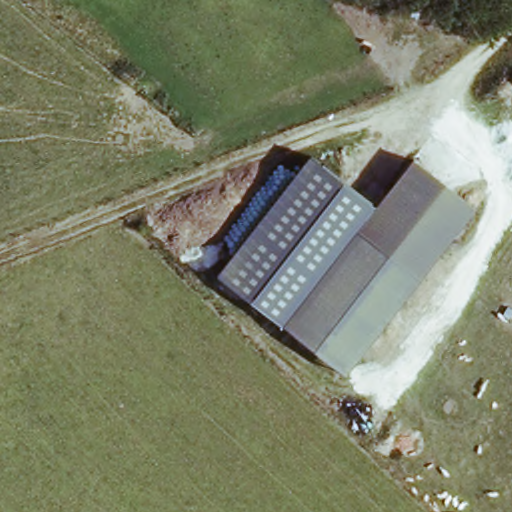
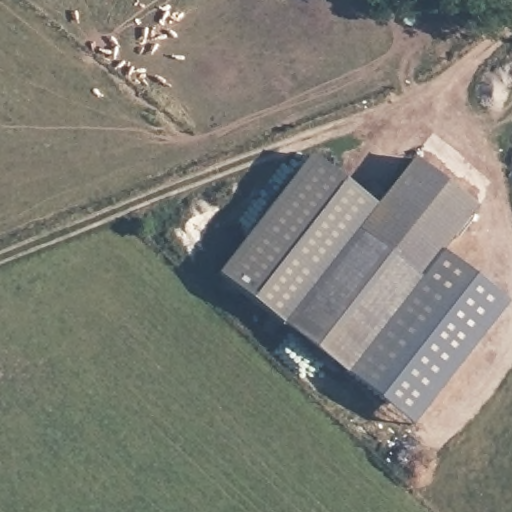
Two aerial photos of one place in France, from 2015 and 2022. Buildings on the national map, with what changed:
unchanged [(370,214),(342,250),(282,327),(219,278),(311,156),(376,206),(370,214)]
unchanged [(472,208),(414,282),(343,374),(282,327),(342,250),(411,161),(472,208)]
new [(509,305),(414,428),(343,374),(414,282),(427,267),(439,251),(509,305)]

